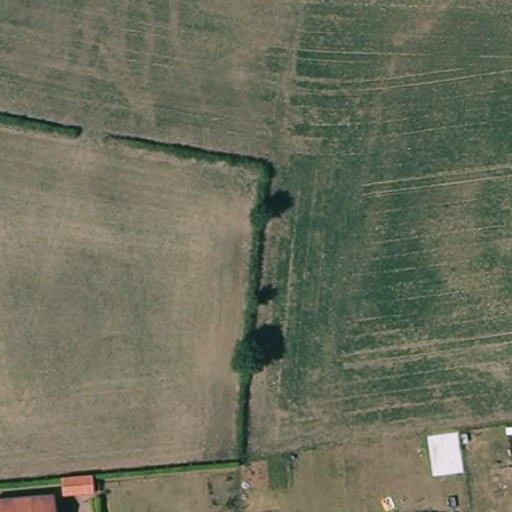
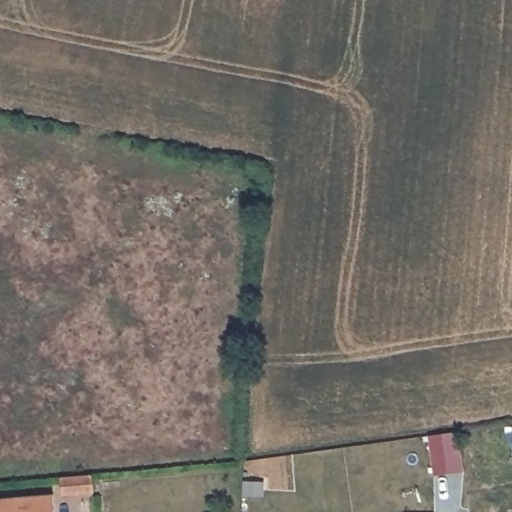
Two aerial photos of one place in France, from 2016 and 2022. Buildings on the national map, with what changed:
unchanged [(56,493),(54,476),(87,472),(88,492),(78,493),(56,493)]
unchanged [(0,499),(50,494),(51,512),(0,512),(0,499)]

